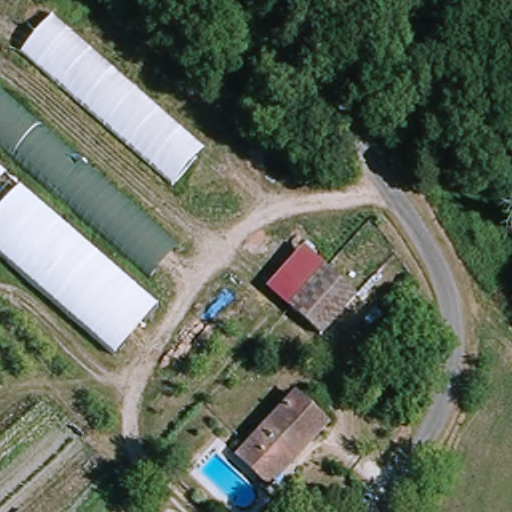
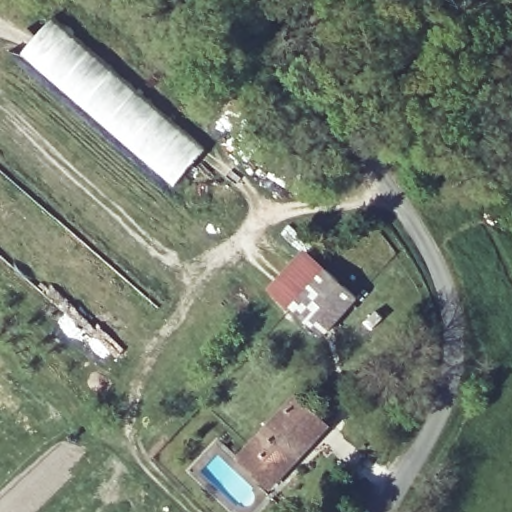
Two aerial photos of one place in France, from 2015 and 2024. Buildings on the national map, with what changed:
unchanged [(207,151),(175,187),(24,57),(54,18),(207,151)]
demolished [(156,272),(0,140),(0,90),(179,246),(156,272)]
demolished [(96,329),(0,257),(0,172),(142,278),(96,329)]
unchanged [(296,310),(270,287),(301,252),(327,272),(296,310)]
unchanged [(356,297),(325,333),(296,310),(327,272),(356,297)]
demolished [(159,290),(117,345),(96,329),(142,278),(159,290)]
unchanged [(240,459),(294,401),(325,430),(271,488),(240,459)]

